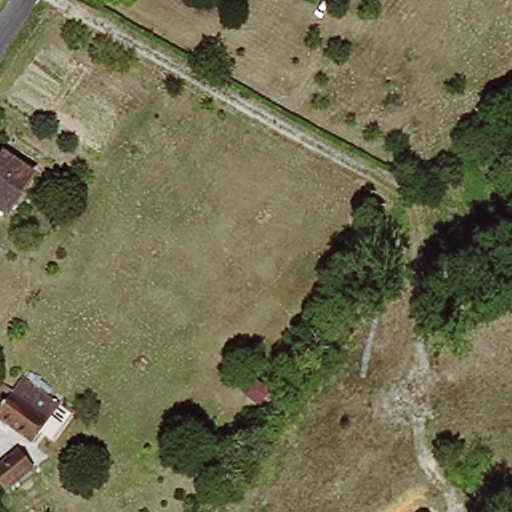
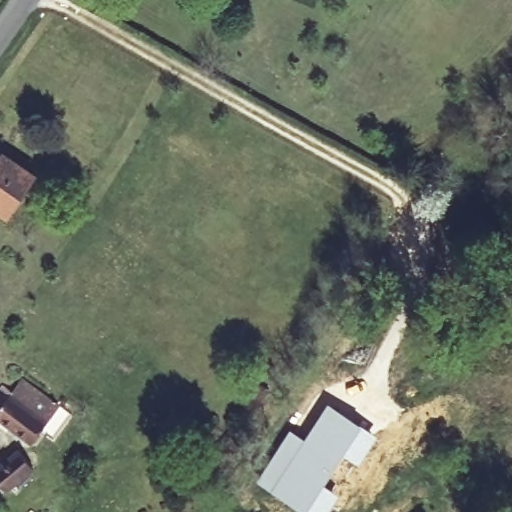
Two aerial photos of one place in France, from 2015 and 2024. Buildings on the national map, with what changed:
unchanged [(0,207),(0,174),(11,157),(39,177),(13,216),(0,207)]
unchanged [(0,400),(11,383),(22,390),(31,377),(71,404),(39,441),(0,419),(0,400)]
new [(289,429),(304,438),(327,402),(378,436),(359,466),(343,456),(326,484),(340,493),(328,512),(303,512),(256,482),(289,429)]
unchanged [(0,468),(16,455),(34,476),(8,497),(0,487),(0,468)]
unchanged [(469,460),(479,475),(462,489),(450,475),(469,460)]

